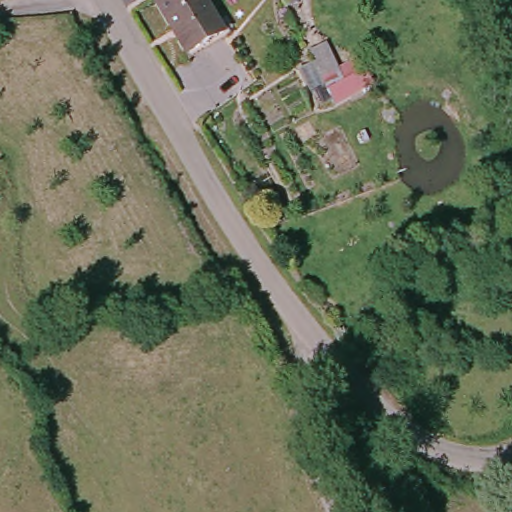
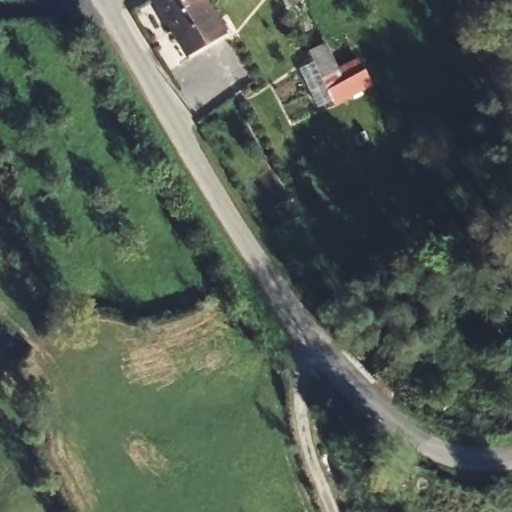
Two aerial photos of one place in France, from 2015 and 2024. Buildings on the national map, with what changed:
unchanged [(204,0),(226,31),(188,57),(154,4),(160,0),(204,0)]
unchanged [(318,111),(298,70),(310,64),(306,52),(325,42),(336,63),(359,55),(374,86),(318,111)]

